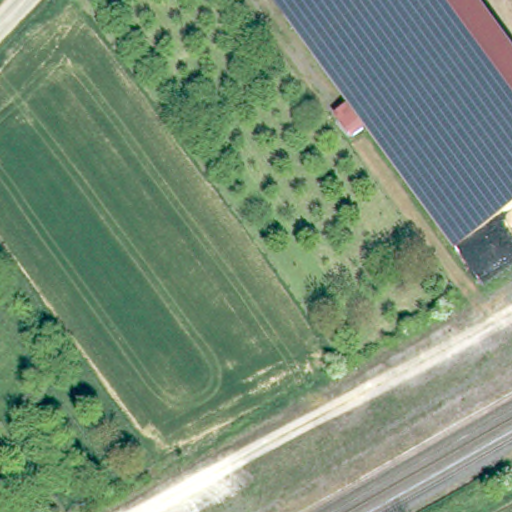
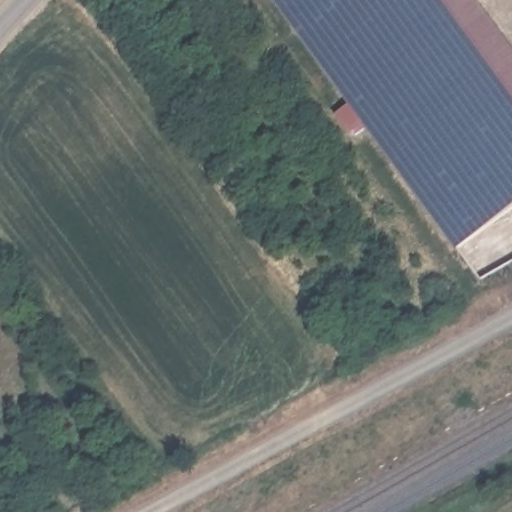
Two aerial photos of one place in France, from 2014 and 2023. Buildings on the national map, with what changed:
unchanged [(512,208),(460,248),(273,0),(479,0),(512,45),(512,208)]
unchanged [(71,494),(67,478),(91,473),(95,489),(71,494)]

